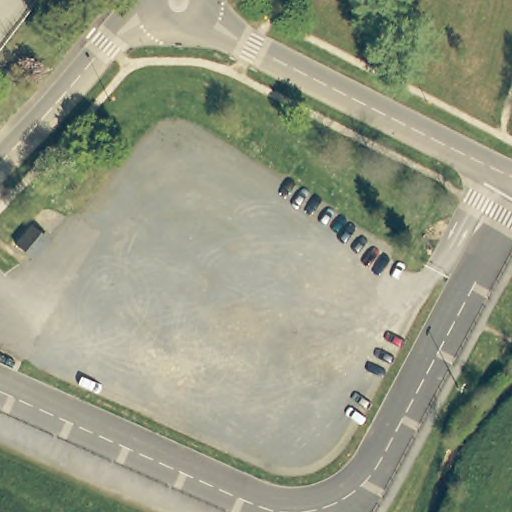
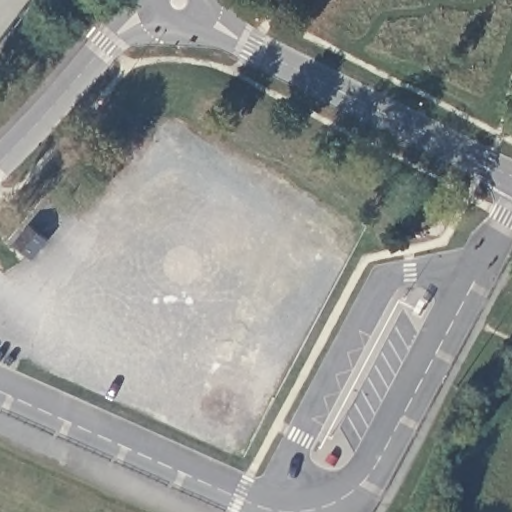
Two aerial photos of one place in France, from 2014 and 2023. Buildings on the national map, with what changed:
unchanged [(47,236),(31,256),(16,242),(31,225),(47,236)]

